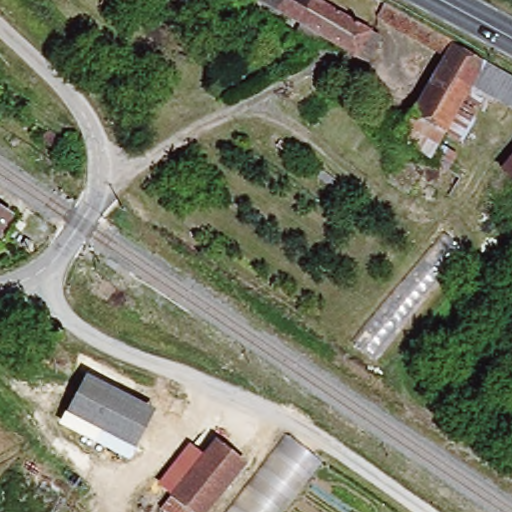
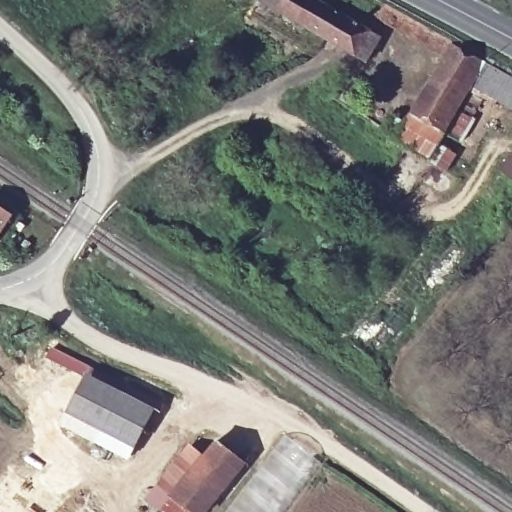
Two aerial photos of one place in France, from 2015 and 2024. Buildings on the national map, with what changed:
unchanged [(356,60),(287,20),(266,7),(258,2),(259,0),(310,0),(371,32),(356,60)]
unchanged [(448,51),(379,7),(384,0),(401,0),(512,64),(512,95),(493,81),(461,132),(454,127),(439,149),(402,128),(448,51)]
unchanged [(389,152),(402,128),(439,149),(426,172),(389,152)]
unchanged [(502,167),(512,153),(512,175),(502,167)]
unchanged [(0,221),(0,215),(3,216),(0,221)]
unchanged [(420,255),(444,277),(374,362),(347,338),(420,255)]
unchanged [(151,411),(129,451),(63,415),(83,377),(151,411)]
unchanged [(316,462),(279,512),(223,512),(279,435),(316,462)]
unchanged [(211,440),(243,466),(205,512),(158,512),(156,510),(164,497),(211,440)]

